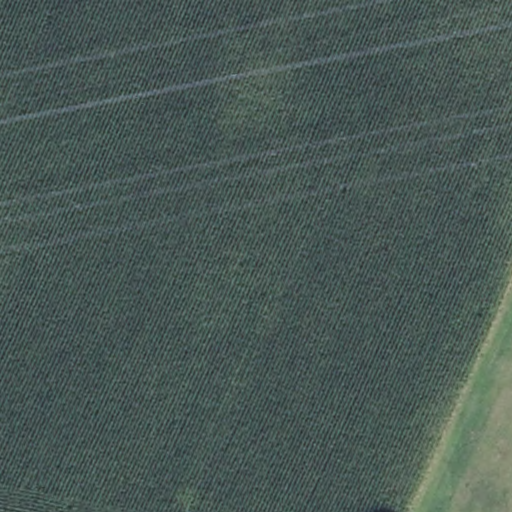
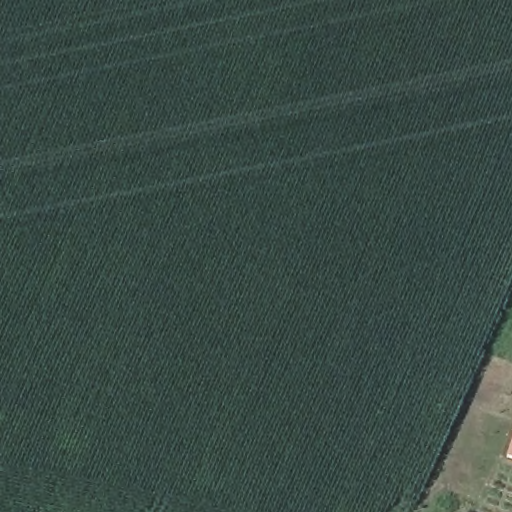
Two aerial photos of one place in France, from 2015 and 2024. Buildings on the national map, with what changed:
new [(504,460),(512,438),(512,462),(504,460)]

